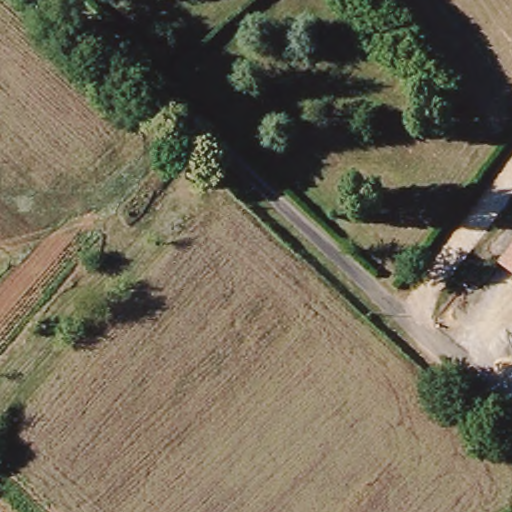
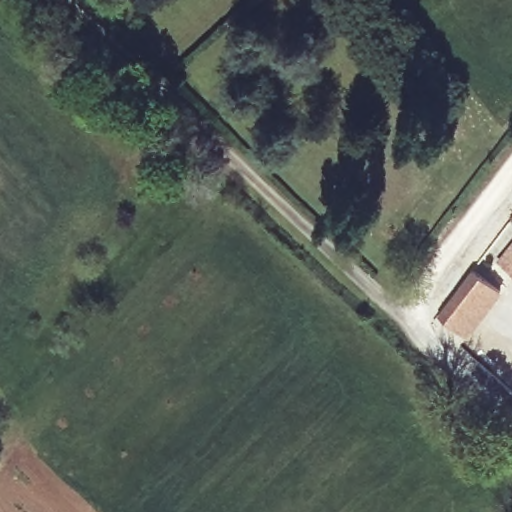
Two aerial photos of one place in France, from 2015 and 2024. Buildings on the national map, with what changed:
unchanged [(500,260),(512,246),(512,271),(500,260)]
new [(475,267),(502,288),(469,332),(442,311),(475,267)]

